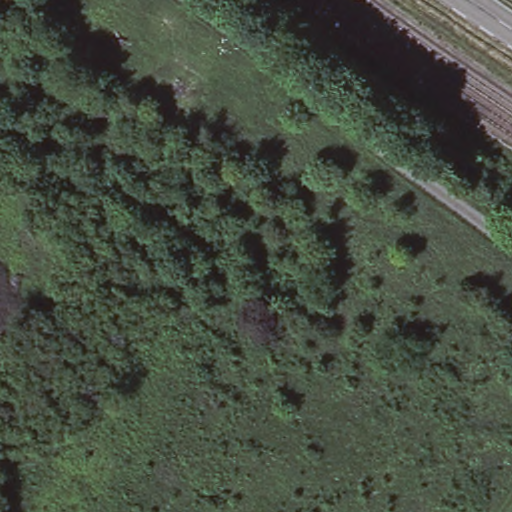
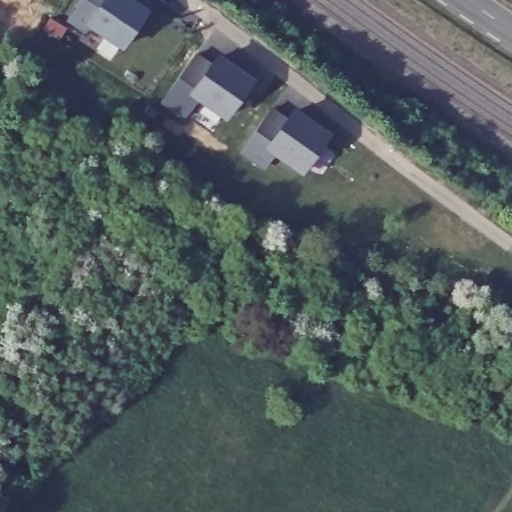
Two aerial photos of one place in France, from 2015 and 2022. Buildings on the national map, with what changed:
unchanged [(42,19),(20,6),(24,0),(41,0),(51,6),(42,19)]
new [(83,32),(66,19),(79,0),(133,0),(149,10),(122,50),(87,26),(83,32)]
new [(196,52),(211,62),(217,53),(255,79),(225,122),(194,100),(183,117),(161,102),(196,52)]
new [(272,106),(286,116),(292,107),(331,134),(305,176),(273,155),(264,169),(242,152),(272,106)]

